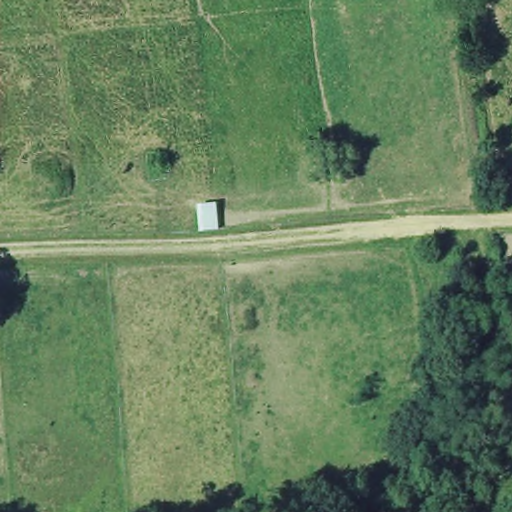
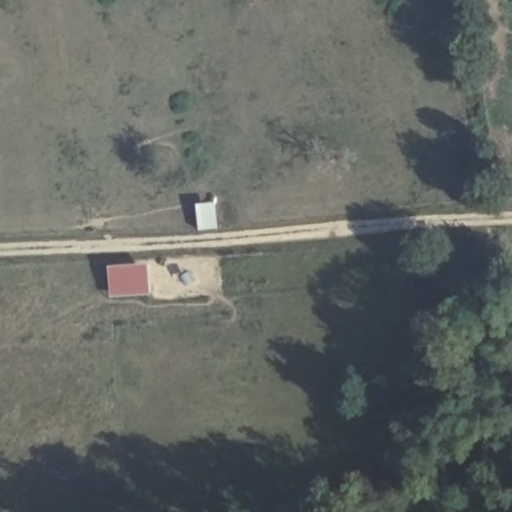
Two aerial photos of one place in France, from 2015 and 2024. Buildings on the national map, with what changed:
new [(108,264),(149,263),(151,294),(110,296),(108,264)]

